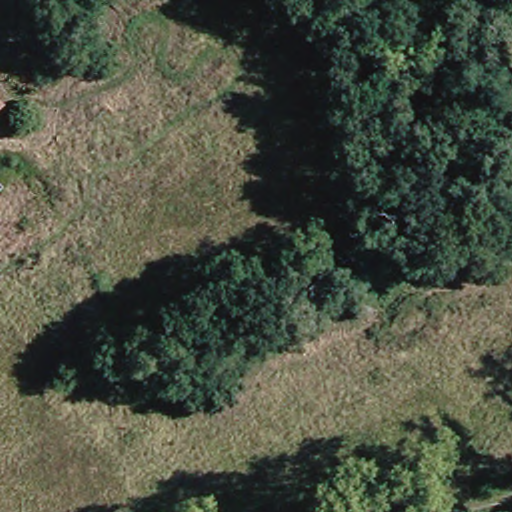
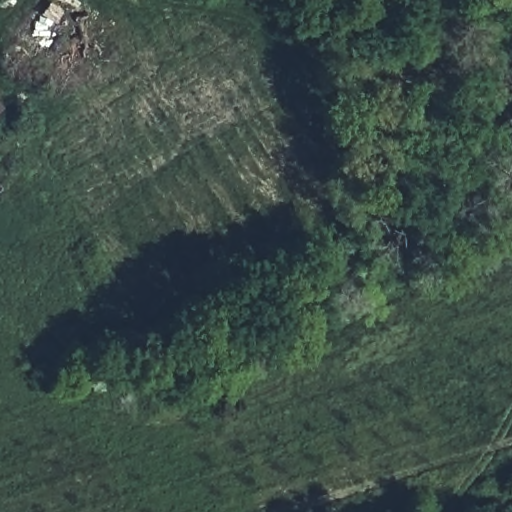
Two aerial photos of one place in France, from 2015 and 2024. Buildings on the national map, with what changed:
[]

